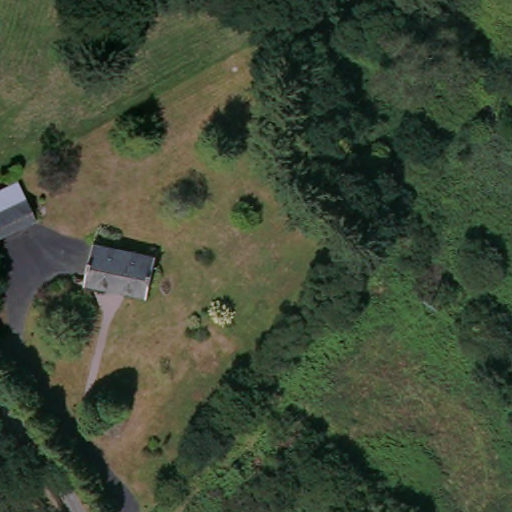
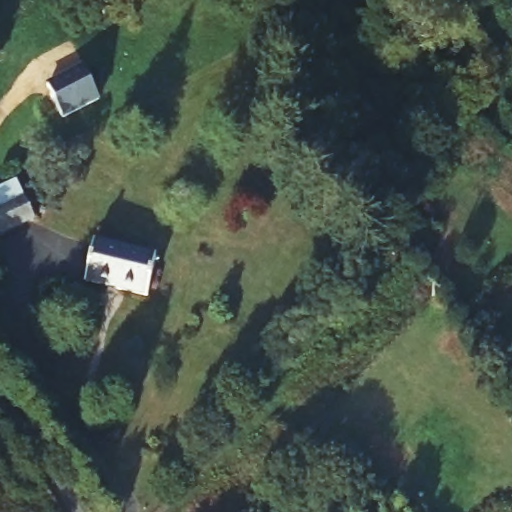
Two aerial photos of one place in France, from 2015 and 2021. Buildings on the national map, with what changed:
new [(83,66),(100,101),(64,119),(47,86),(83,66)]
unchanged [(14,178),(32,210),(35,216),(0,235),(0,186),(14,178)]
unchanged [(83,287),(92,246),(129,254),(162,260),(151,299),(83,287)]

